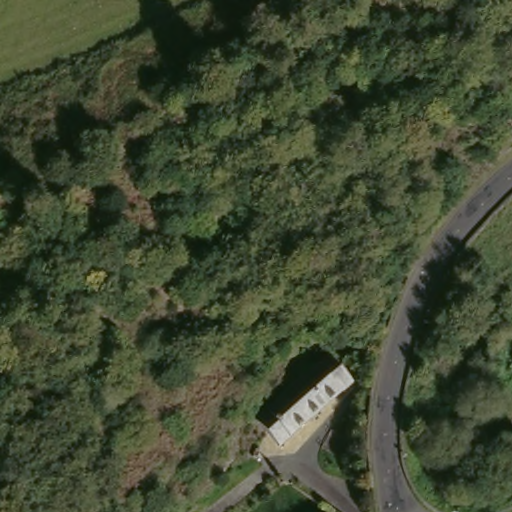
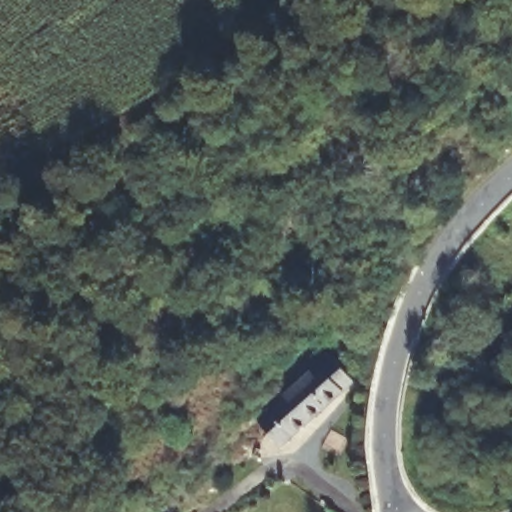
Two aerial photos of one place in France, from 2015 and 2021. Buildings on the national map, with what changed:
unchanged [(352,385),(273,452),(254,430),(252,428),(266,416),(323,365),(329,360),(352,385)]

